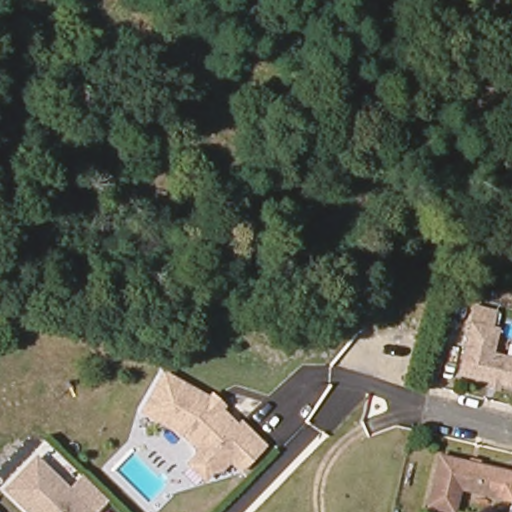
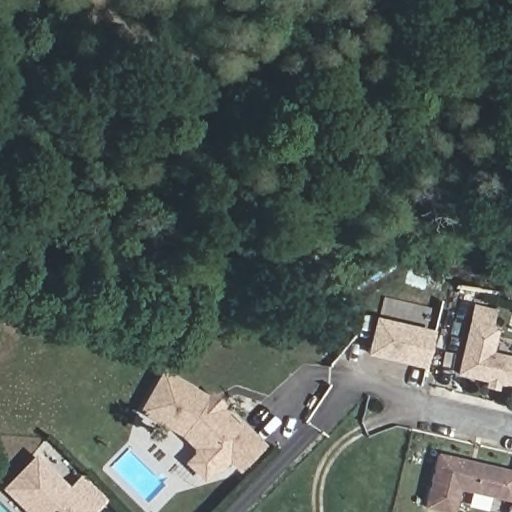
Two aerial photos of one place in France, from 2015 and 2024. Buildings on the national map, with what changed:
new [(366,355),(375,317),(433,331),(425,368),(366,355)]
unchanged [(472,324),(499,330),(494,354),(512,358),(512,388),(461,377),(472,324)]
unchanged [(187,455),(193,447),(194,435),(141,405),(159,368),(207,392),(232,420),(239,413),(257,432),(236,455),(224,445),(211,458),(207,455),(199,465),(187,455)]
unchanged [(94,512),(23,512),(0,490),(0,487),(35,453),(94,512)]
unchanged [(459,490),(454,512),(444,512),(426,507),(439,455),(512,472),(512,512),(507,512),(510,501),(459,490)]

